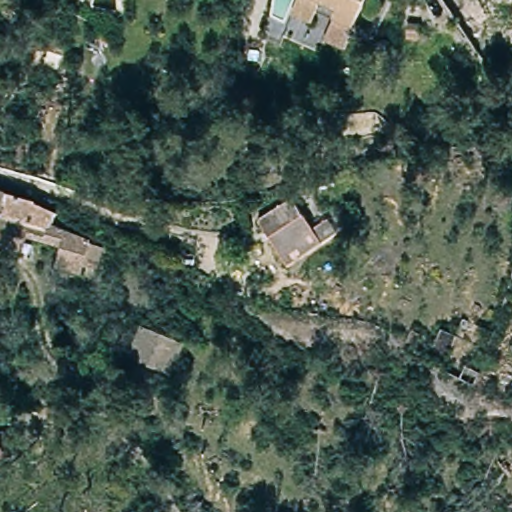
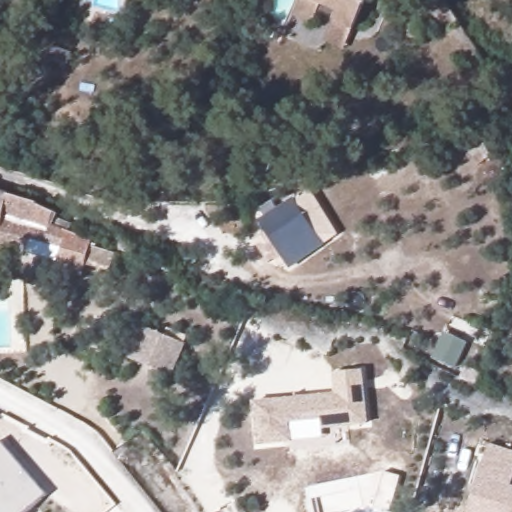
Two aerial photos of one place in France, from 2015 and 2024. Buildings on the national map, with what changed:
unchanged [(287,21),(273,15),(275,0),(296,0),(287,21)]
unchanged [(321,52),(335,20),(319,12),(313,25),(293,16),(300,0),(369,0),(342,61),(321,52)]
unchanged [(313,191),(343,238),(307,260),(278,212),(313,191)]
unchanged [(0,228),(0,204),(29,211),(27,215),(45,220),(43,227),(101,242),(100,247),(112,250),(106,274),(94,271),(91,281),(34,265),(41,238),(0,228)]
unchanged [(181,344),(170,372),(127,355),(139,327),(181,344)]
new [(468,343),(455,370),(432,360),(444,333),(468,343)]
new [(335,395),(333,373),(363,370),(369,425),(323,432),(320,420),(291,423),(293,442),(258,447),(252,402),(335,395)]
demolished [(16,450),(0,456),(0,433),(10,430),(16,450)]
new [(29,512),(0,512),(0,441),(48,496),(29,512)]
new [(511,487),(512,487),(512,512),(468,512),(489,444),(512,452),(512,483),(511,487)]

